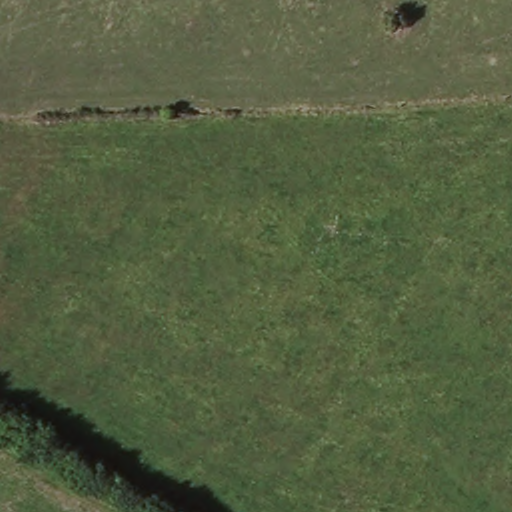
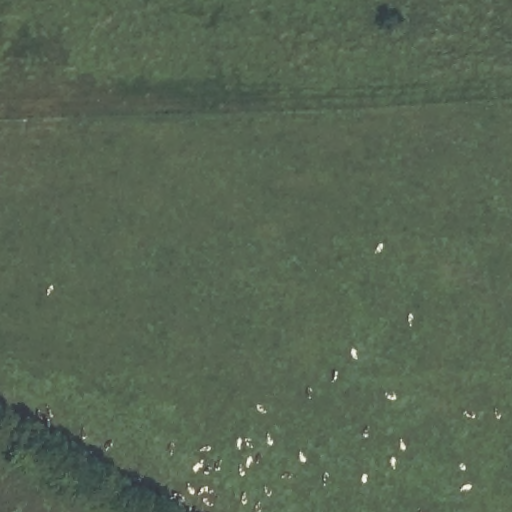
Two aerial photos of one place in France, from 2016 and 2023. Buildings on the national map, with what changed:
[]

